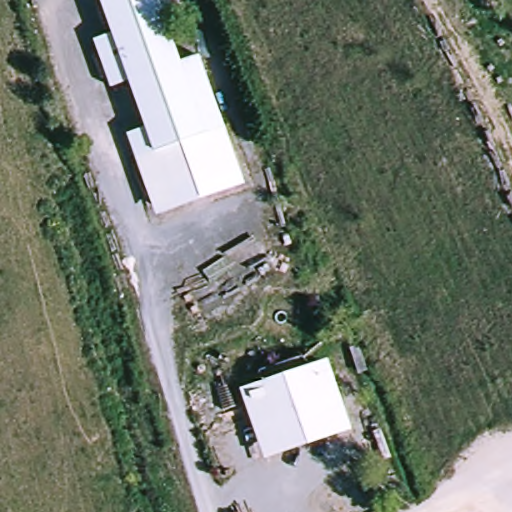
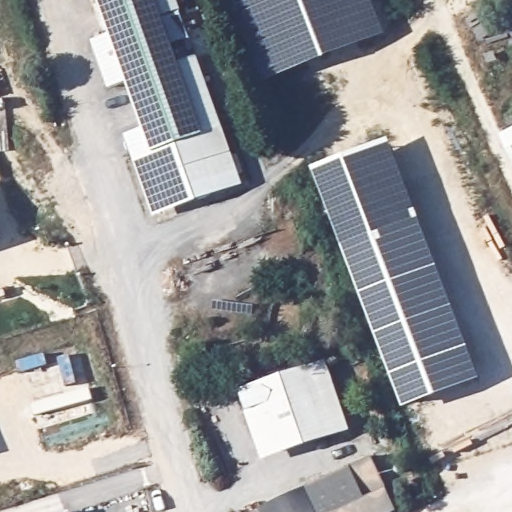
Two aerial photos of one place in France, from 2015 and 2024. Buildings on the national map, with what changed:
unchanged [(107,0),(161,0),(167,19),(184,69),(208,139),(159,156),(149,128),(134,83),(115,90),(100,46),(120,40),(107,0)]
unchanged [(161,0),(179,0),(184,14),(167,19),(161,0)]
new [(265,83),(234,0),(373,0),(387,35),(265,83)]
unchanged [(157,210),(129,135),(149,128),(159,156),(208,139),(184,69),(203,62),(243,181),(157,210)]
new [(512,157),(501,136),(512,131),(512,157)]
new [(312,168),(390,138),(482,379),(406,409),(312,168)]
unchanged [(239,389),(326,359),(350,431),(263,459),(239,389)]
new [(352,467),(371,458),(387,490),(397,512),(337,512),(365,498),(352,467)]
new [(337,512),(262,512),(261,509),(352,467),(365,498),(337,512)]
new [(262,512),(255,512),(261,509),(262,512)]

